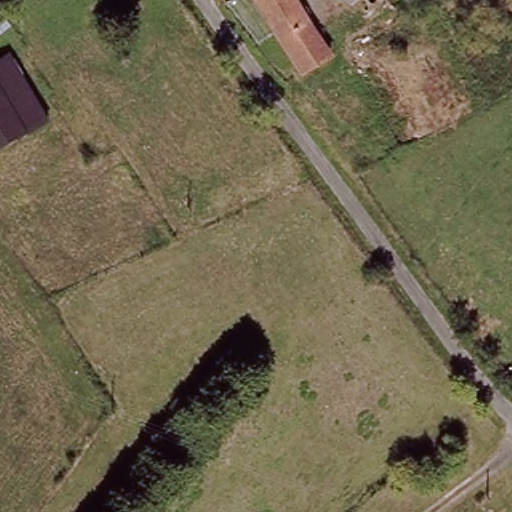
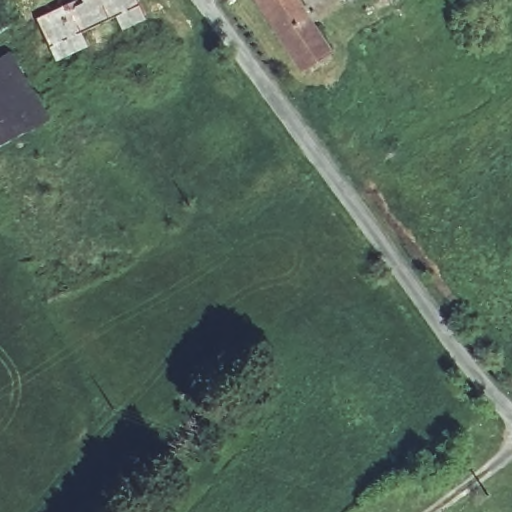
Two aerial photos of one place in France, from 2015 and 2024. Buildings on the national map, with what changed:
new [(80,33),(86,45),(55,60),(36,18),(76,0),(136,0),(146,19),(121,30),(115,15),(80,33)]
unchanged [(306,72),(250,0),(312,0),(345,41),(306,72)]
unchanged [(16,50),(55,117),(0,146),(0,59),(16,50)]

